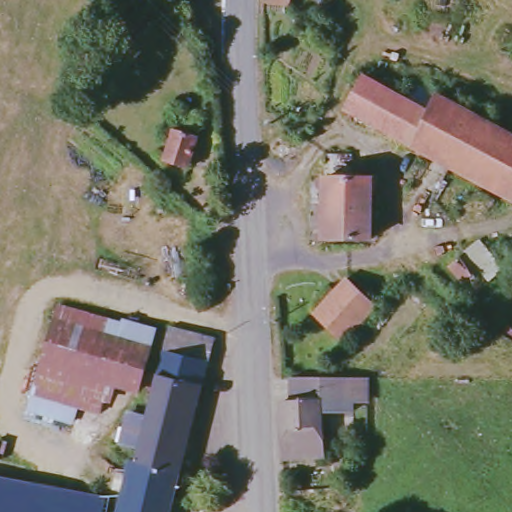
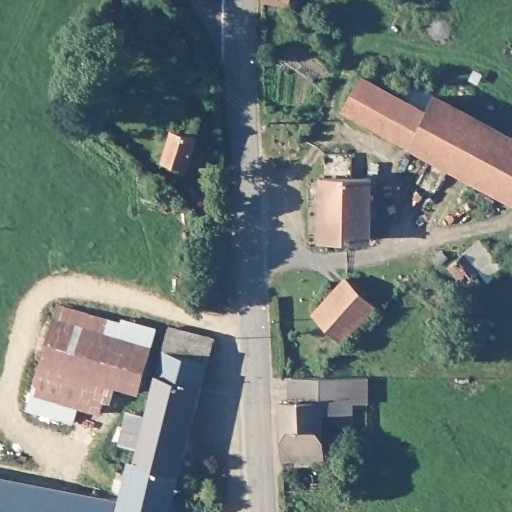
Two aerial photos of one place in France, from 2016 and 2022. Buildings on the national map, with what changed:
unchanged [(261,2),(261,0),(288,0),(287,5),(261,2)]
unchanged [(367,77),(408,99),(415,85),(512,136),(512,197),(348,111),(367,77)]
unchanged [(164,164),(174,131),(196,138),(186,170),(164,164)]
unchanged [(322,179),(369,179),(368,239),(321,239),(322,179)]
unchanged [(477,241),(502,270),(476,291),(466,280),(460,284),(445,265),(477,241)]
unchanged [(312,314),(344,279),(375,308),(343,342),(312,314)]
unchanged [(32,397),(37,399),(59,307),(160,329),(138,394),(118,391),(111,404),(104,403),(98,419),(77,414),(75,426),(29,414),(32,397)]
unchanged [(216,338),(204,386),(159,373),(172,328),(216,338)]
unchanged [(198,411),(152,398),(159,373),(204,386),(198,411)]
unchanged [(361,378),(362,396),(294,397),(293,378),(361,378)]
unchanged [(174,512),(117,512),(129,458),(136,459),(140,442),(124,439),(134,410),(148,413),(152,398),(198,411),(174,512)]
unchanged [(284,401),(320,399),(326,455),(286,459),(284,401)]
unchanged [(110,497),(108,512),(0,512),(0,477),(110,497)]

